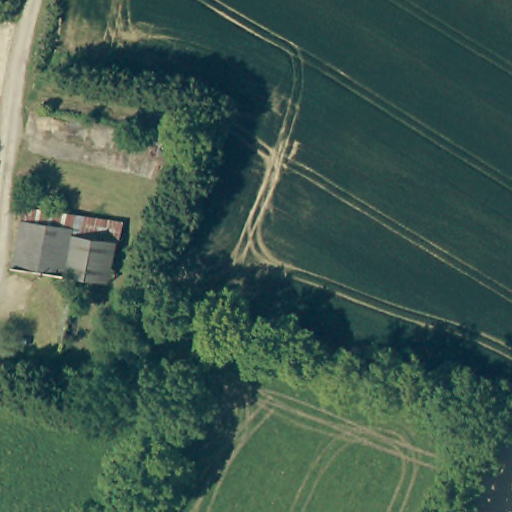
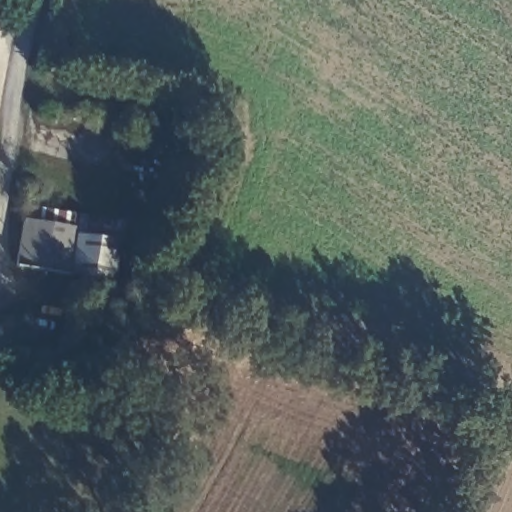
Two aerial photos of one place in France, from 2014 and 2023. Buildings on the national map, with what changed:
unchanged [(0,154),(0,151),(1,151),(0,154)]
unchanged [(122,290),(81,281),(30,270),(30,265),(37,210),(89,216),(137,223),(134,239),(127,290),(122,290)]

